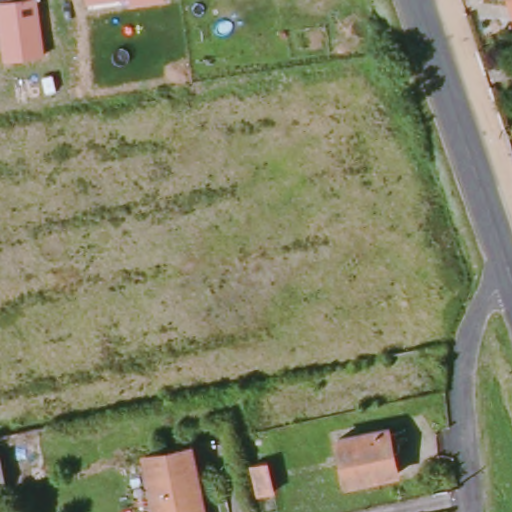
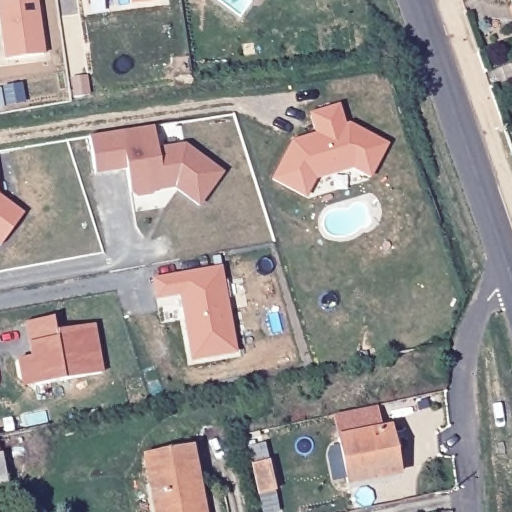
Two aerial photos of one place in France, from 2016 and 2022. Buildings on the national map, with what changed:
unchanged [(45,53),(5,59),(0,15),(0,0),(38,0),(45,53)]
unchanged [(87,2),(87,0),(101,0),(87,2)]
unchanged [(130,5),(129,0),(162,0),(130,5)]
unchanged [(506,0),(512,0),(512,19),(506,0)]
new [(340,104),(345,124),(349,123),(390,143),(371,179),(352,169),(315,180),(306,198),(272,180),(292,142),(315,135),(310,114),(340,104)]
new [(153,127),(157,148),(185,145),(224,172),(198,207),(173,189),(152,192),(152,195),(135,198),(131,195),(127,168),(95,174),(89,138),(153,127)]
new [(1,246),(0,246),(0,194),(24,213),(1,246)]
new [(153,280),(221,266),(237,353),(191,361),(180,297),(156,300),(153,280)]
new [(52,318),(56,333),(95,325),(104,373),(22,389),(17,361),(31,357),(25,325),(52,318)]
unchanged [(334,438),(387,427),(395,474),(343,486),(334,438)]
unchanged [(190,446),(202,512),(153,512),(142,457),(190,446)]
new [(7,484),(0,486),(0,455),(1,454),(7,484)]
unchanged [(270,456),(278,490),(261,495),(253,459),(270,456)]

